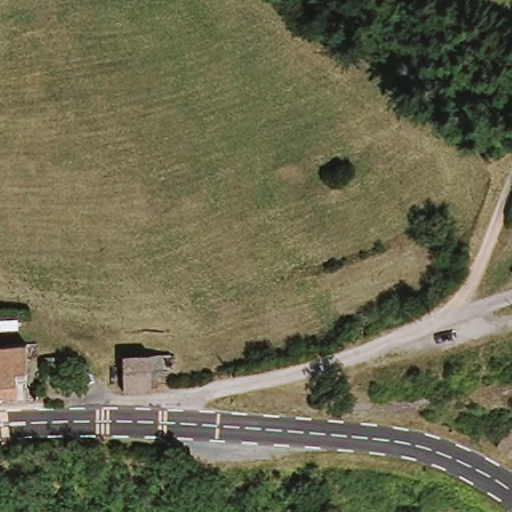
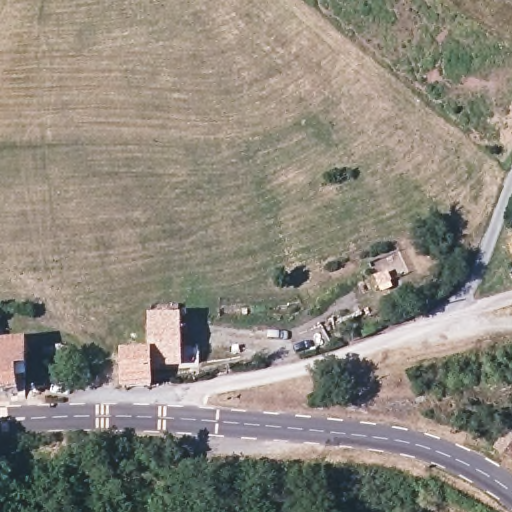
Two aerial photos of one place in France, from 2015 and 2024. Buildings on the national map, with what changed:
new [(182,315),(182,368),(169,369),(169,354),(149,355),(148,317),(182,315)]
unchanged [(44,357),(45,374),(31,374),(33,403),(10,404),(8,347),(44,344),(44,357)]
unchanged [(10,404),(0,405),(0,347),(8,347),(10,404)]
unchanged [(119,356),(169,354),(168,375),(150,377),(150,388),(118,389),(119,356)]
unchanged [(505,428),(512,431),(512,461),(490,447),(505,428)]

